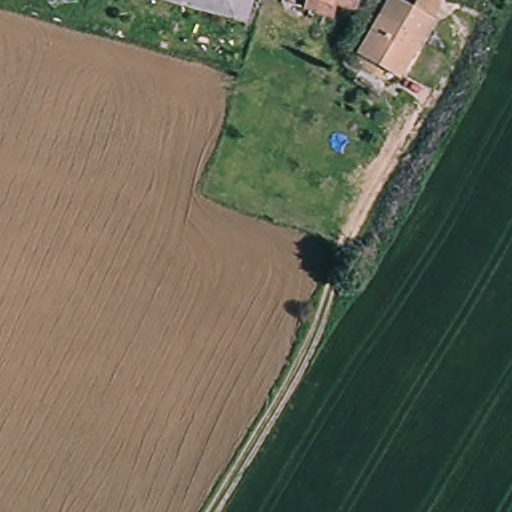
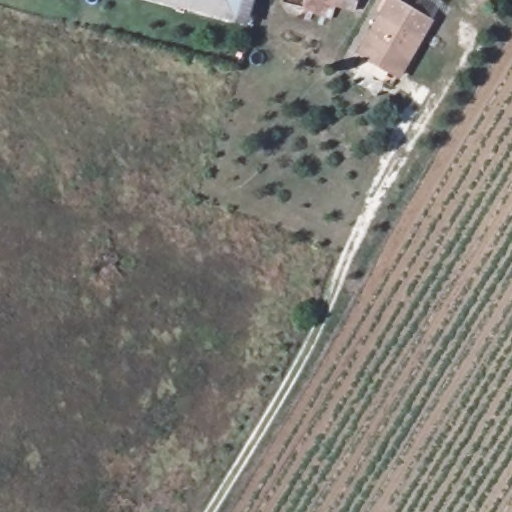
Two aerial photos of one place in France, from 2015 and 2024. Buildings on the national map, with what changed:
unchanged [(153,0),(243,0),(235,26),(153,0)]
unchanged [(289,0),(338,0),(335,10),(320,7),(316,21),(302,17),(305,4),(289,0)]
unchanged [(403,0),(411,4),(414,0),(446,0),(398,80),(354,53),(385,0),(403,0)]

